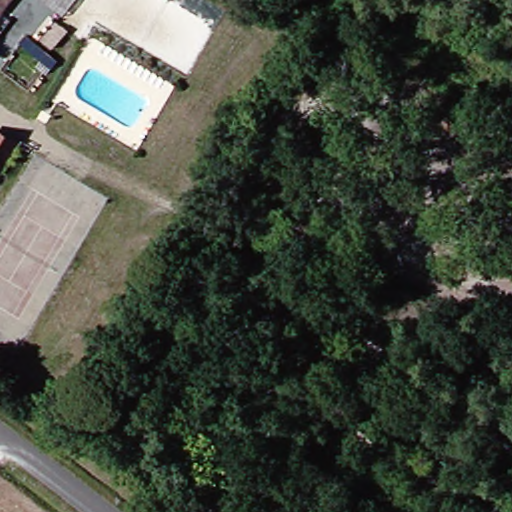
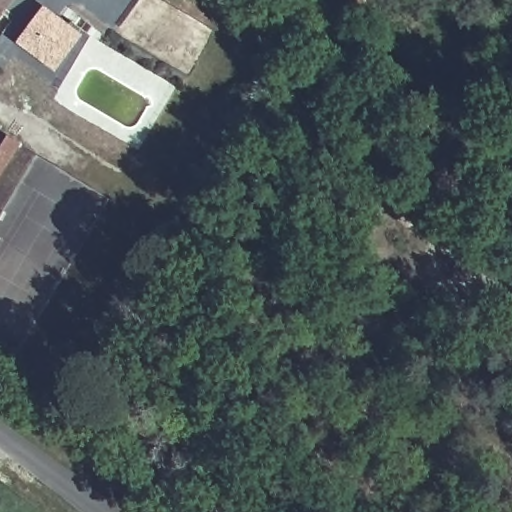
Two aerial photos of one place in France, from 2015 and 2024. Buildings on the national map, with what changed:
unchanged [(8,0),(0,12),(0,0),(8,0)]
demolished [(47,0),(76,0),(66,13),(47,0)]
new [(81,33),(53,71),(15,43),(44,4),(81,33)]
unchanged [(9,142),(0,162),(0,138),(9,142)]

